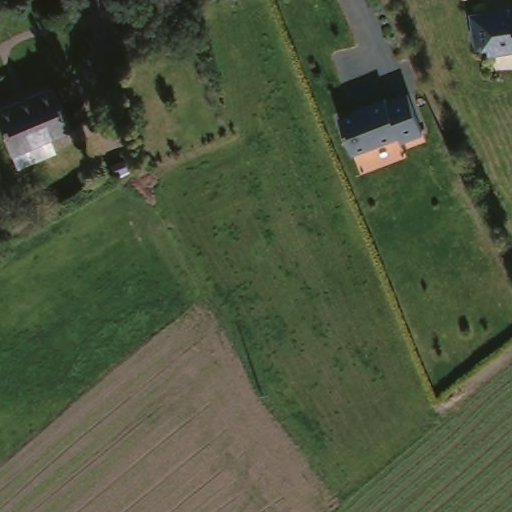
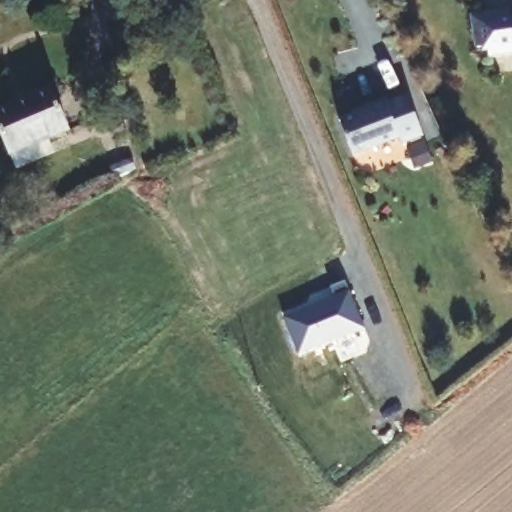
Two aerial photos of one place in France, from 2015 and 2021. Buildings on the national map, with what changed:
unchanged [(490,39),(479,41),(474,9),(512,4),(512,7),(512,46),(492,49),(490,39)]
unchanged [(74,127),(18,150),(4,112),(59,88),(74,127)]
unchanged [(426,129),(402,139),(399,132),(354,151),(339,115),(359,107),(365,102),(387,93),(389,98),(410,89),(426,129)]
new [(129,156),(136,168),(117,179),(110,167),(129,156)]
new [(336,299),(332,289),(347,283),(366,331),(301,357),(285,319),(336,299)]

